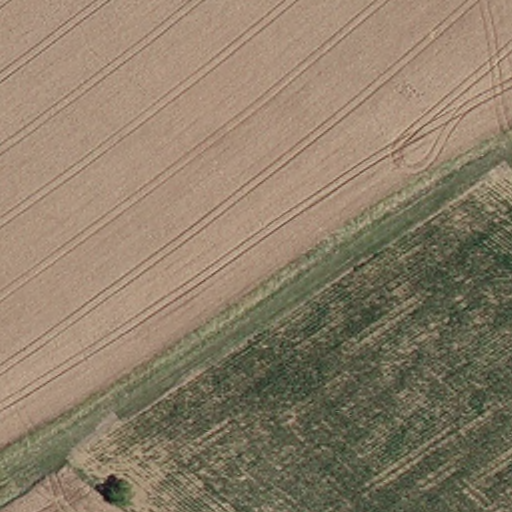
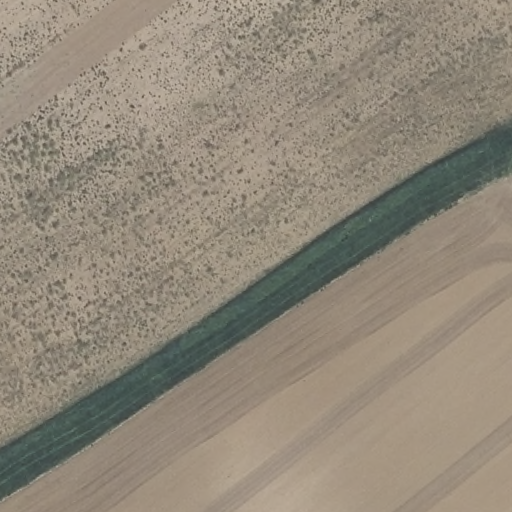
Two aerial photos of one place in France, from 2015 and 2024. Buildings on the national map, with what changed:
[]

